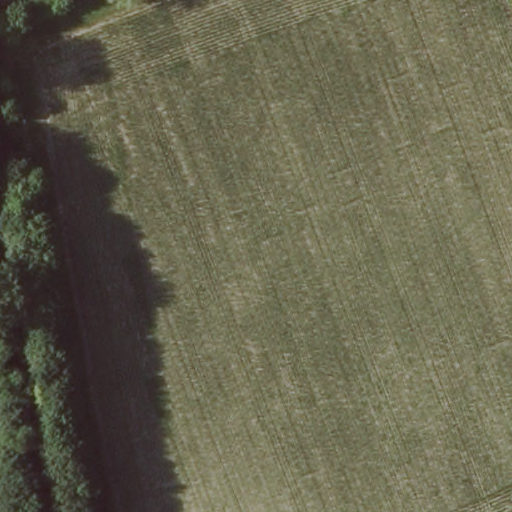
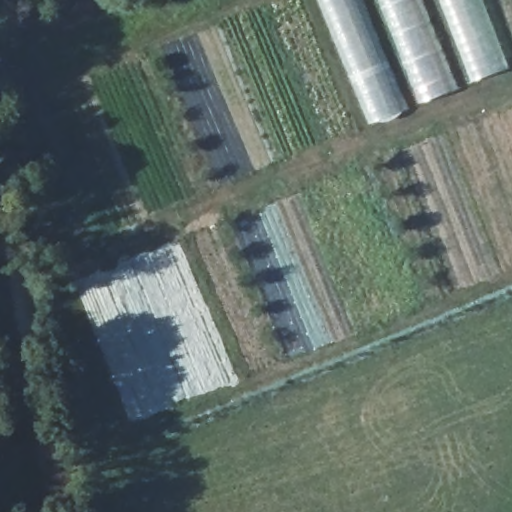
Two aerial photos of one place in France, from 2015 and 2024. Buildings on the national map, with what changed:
new [(323,0),(482,0),(509,69),(375,124),(323,0)]

